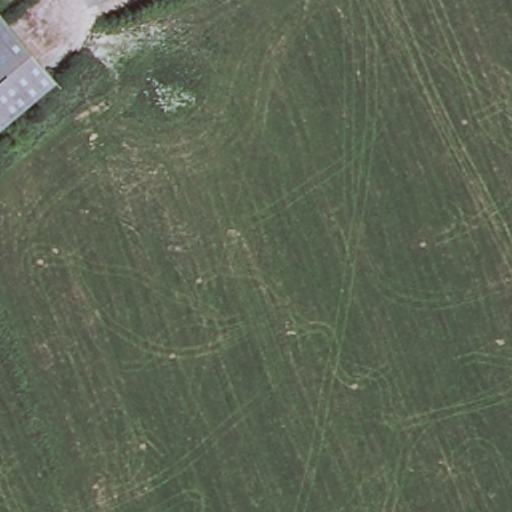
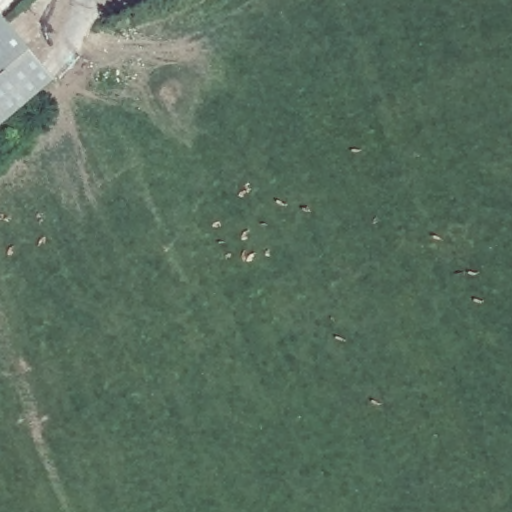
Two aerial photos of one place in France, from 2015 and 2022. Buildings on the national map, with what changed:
unchanged [(11,19),(60,76),(0,127),(0,28),(11,19)]

